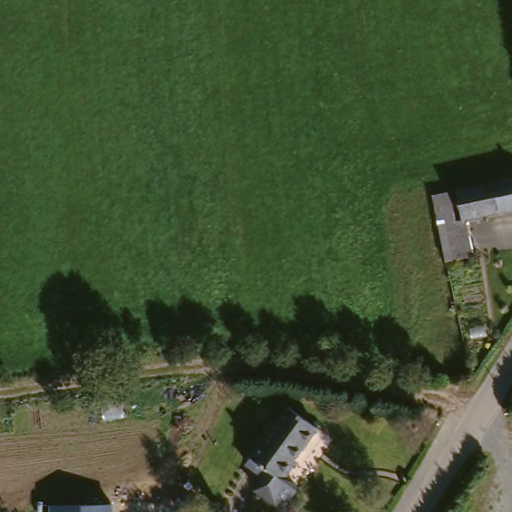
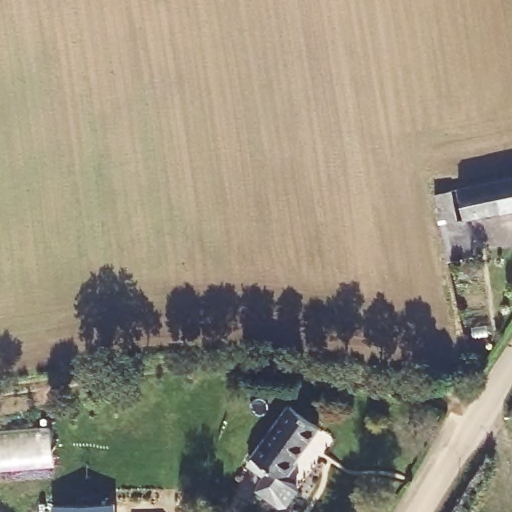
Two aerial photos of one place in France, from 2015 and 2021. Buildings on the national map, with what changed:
unchanged [(512,183),(512,214),(463,223),(457,193),(488,187),(512,183)]
unchanged [(438,228),(463,223),(469,260),(445,265),(438,228)]
unchanged [(309,443),(286,474),(289,476),(278,493),(248,470),(283,423),(309,443)]
new [(0,468),(0,432),(48,428),(51,464),(0,468)]
unchanged [(51,512),(51,505),(114,503),(115,512),(51,512)]

